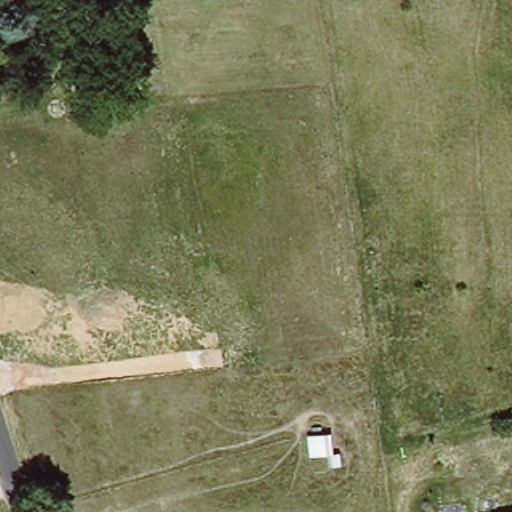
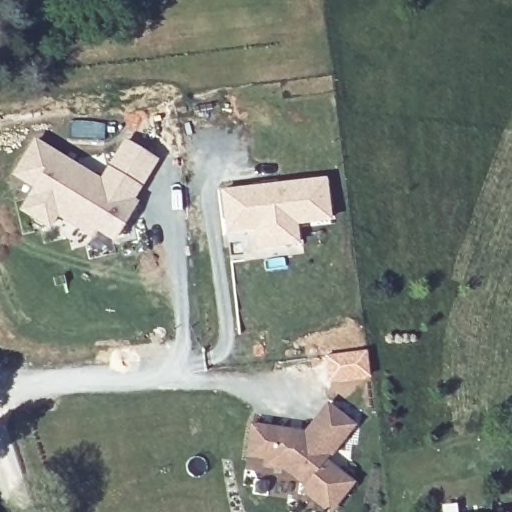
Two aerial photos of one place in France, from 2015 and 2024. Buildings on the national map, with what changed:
new [(155,159),(121,215),(124,225),(112,241),(95,232),(91,238),(27,199),(32,189),(12,177),(35,138),(59,154),(57,157),(83,173),(82,176),(97,185),(125,141),(155,159)]
new [(332,221),(297,226),(298,245),(255,249),(254,231),(225,234),(220,191),(327,177),(332,221)]
new [(355,427),(328,462),(353,482),(331,512),(327,512),(301,493),(304,487),(288,474),(261,471),(262,461),(245,460),(250,425),(303,432),(326,404),(355,427)]

